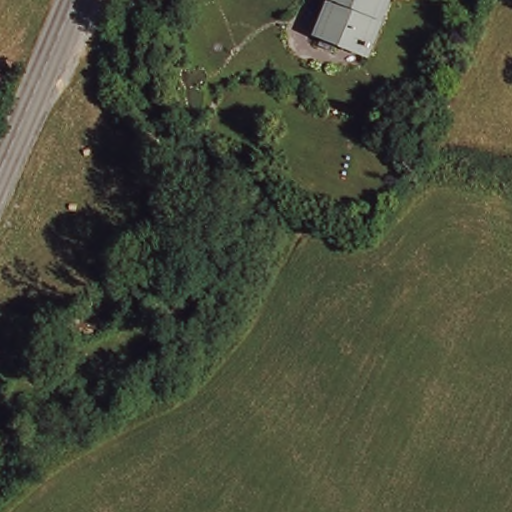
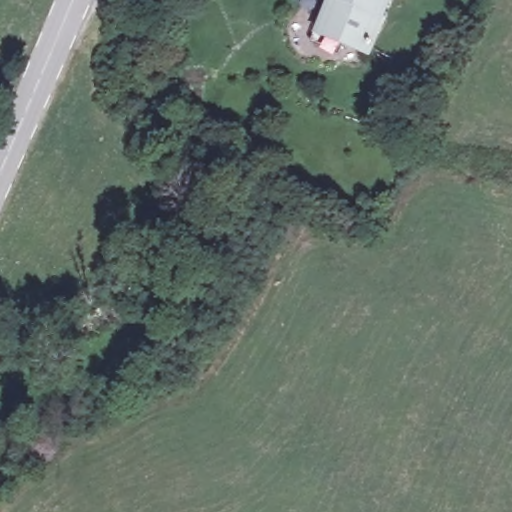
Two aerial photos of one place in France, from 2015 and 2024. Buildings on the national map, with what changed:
unchanged [(314,21),(324,0),(377,0),(360,39),(314,21)]

